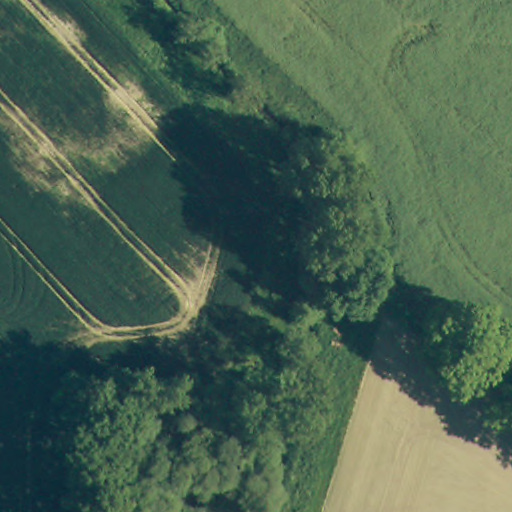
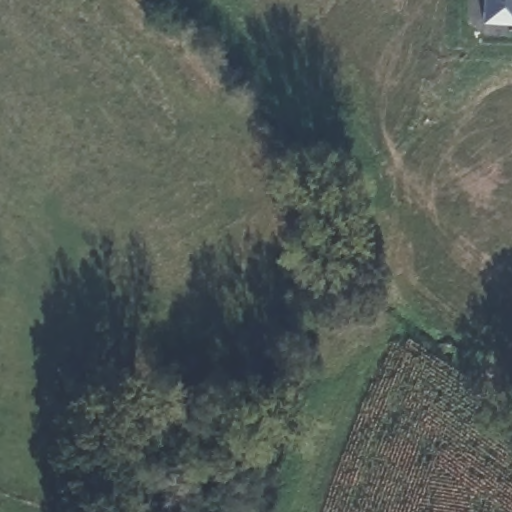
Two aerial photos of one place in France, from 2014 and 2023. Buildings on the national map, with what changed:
new [(483,22),(484,0),(512,0),(512,24),(483,22)]

